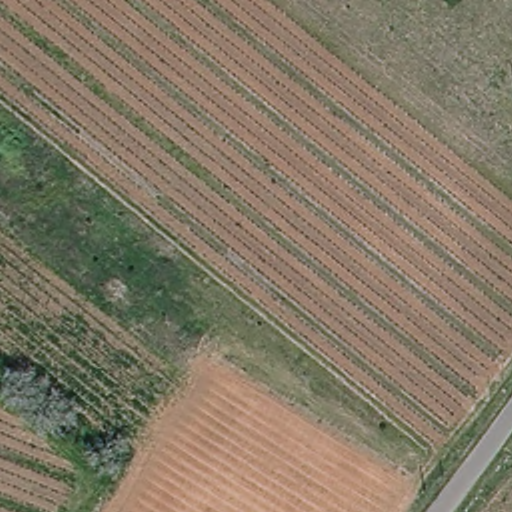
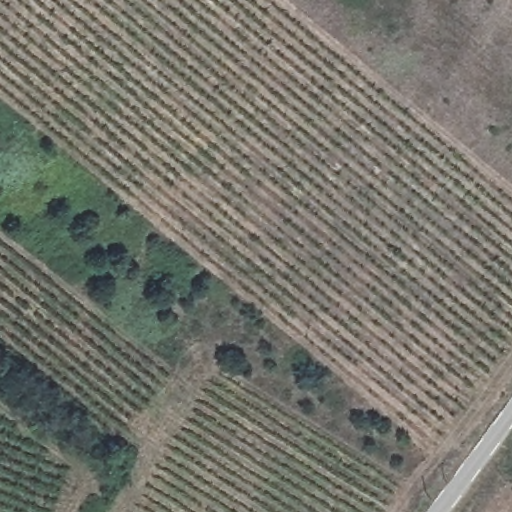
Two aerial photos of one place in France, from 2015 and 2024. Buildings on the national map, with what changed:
[]

